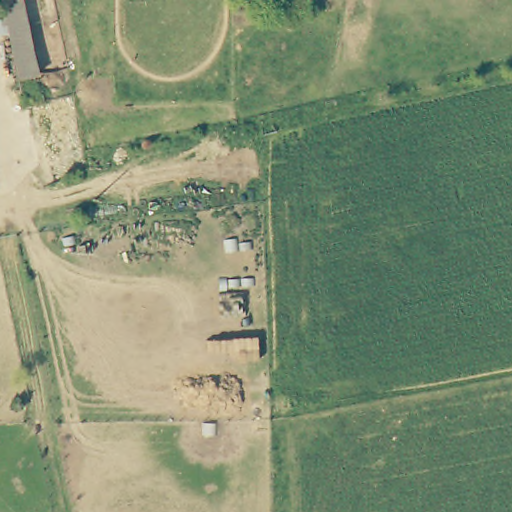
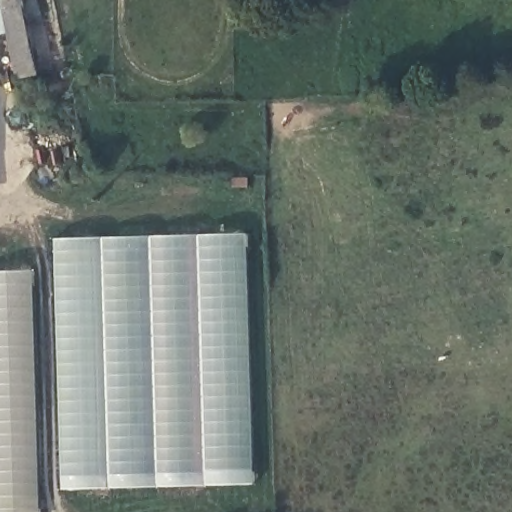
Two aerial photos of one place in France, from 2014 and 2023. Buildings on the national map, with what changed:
unchanged [(0,4),(0,0),(21,0),(37,73),(15,78),(5,29),(0,30),(0,9),(1,9),(0,4)]
new [(257,486),(64,490),(56,238),(247,234),(257,486)]

